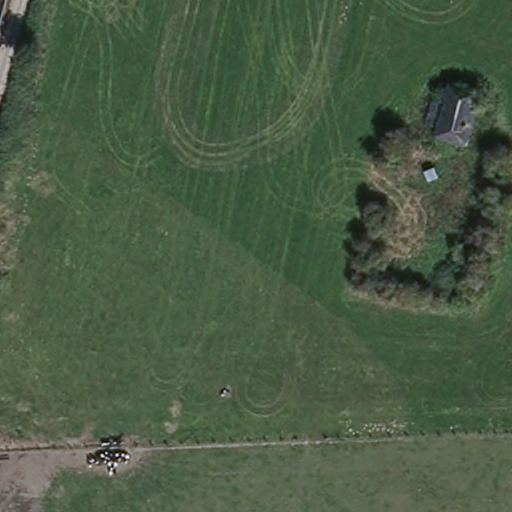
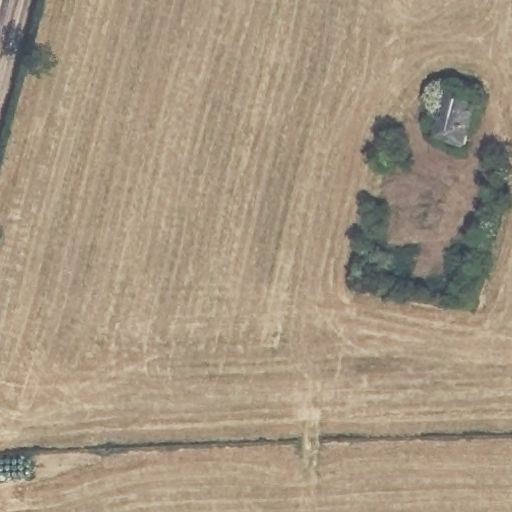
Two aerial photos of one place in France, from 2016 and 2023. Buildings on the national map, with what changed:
unchanged [(480,97),(466,154),(433,145),(437,130),(425,127),(431,107),(442,110),(448,88),(480,97)]

